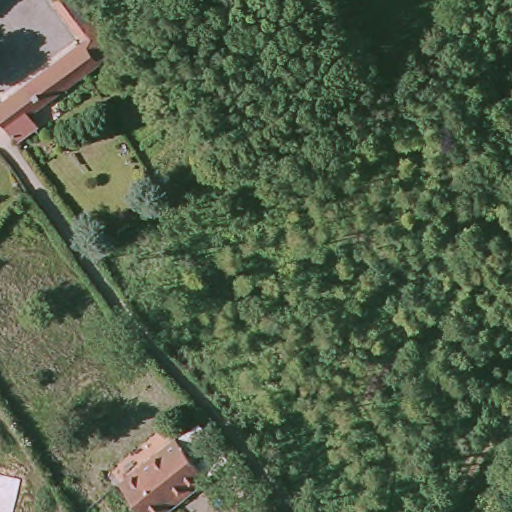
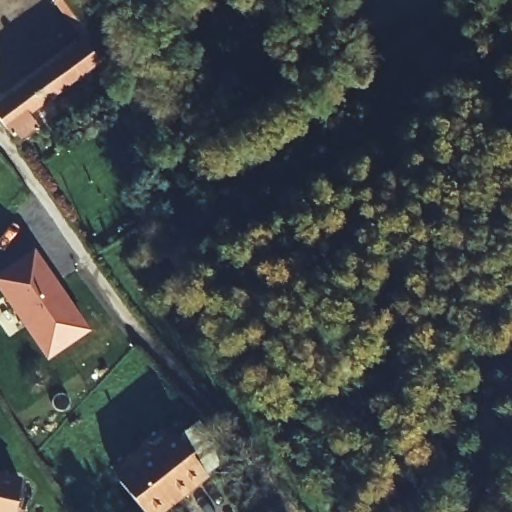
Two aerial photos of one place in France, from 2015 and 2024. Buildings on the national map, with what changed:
unchanged [(90,9),(118,49),(76,78),(65,86),(19,118),(26,129),(14,136),(0,116),(0,98),(83,41),(58,2),(61,0),(76,0),(84,12),(90,9)]
new [(47,361),(0,292),(0,272),(33,248),(90,330),(47,361)]
unchanged [(183,501),(176,493),(150,512),(149,512),(125,479),(178,440),(209,482),(183,501)]
new [(0,471),(20,476),(14,512),(0,512),(0,471)]

